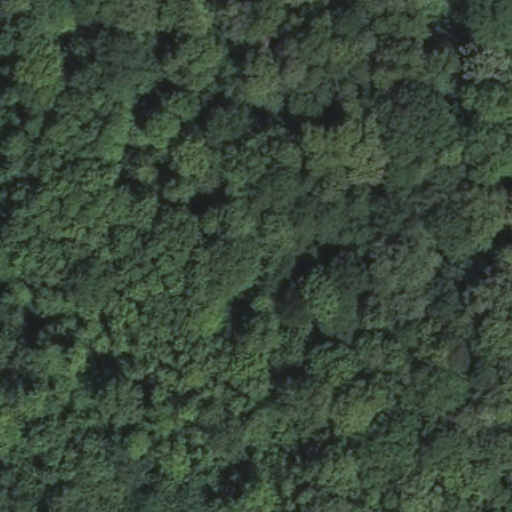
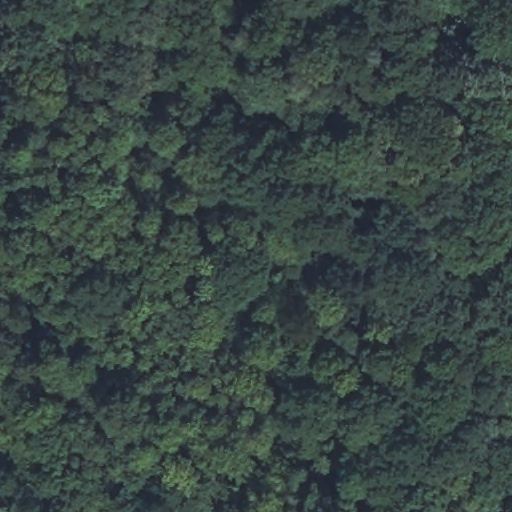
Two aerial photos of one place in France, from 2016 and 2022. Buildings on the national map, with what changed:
[]

